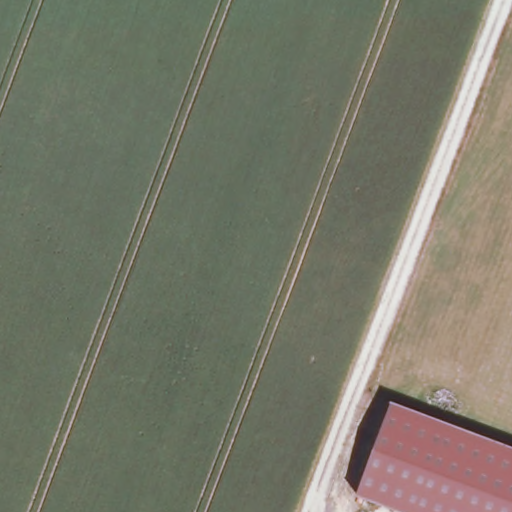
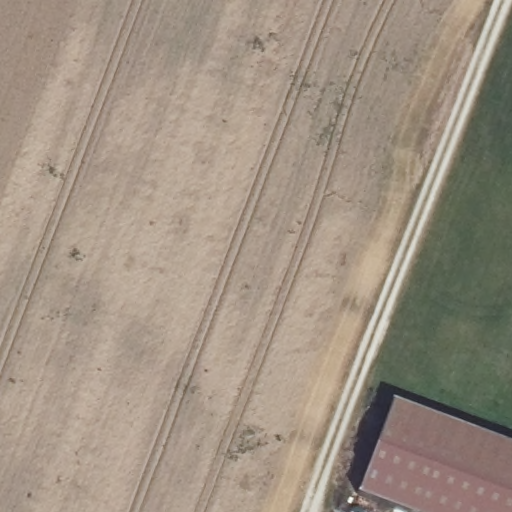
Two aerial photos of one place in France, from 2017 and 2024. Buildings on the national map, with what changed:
unchanged [(358,495),(392,402),(512,447),(512,512),(403,512),(358,495)]

